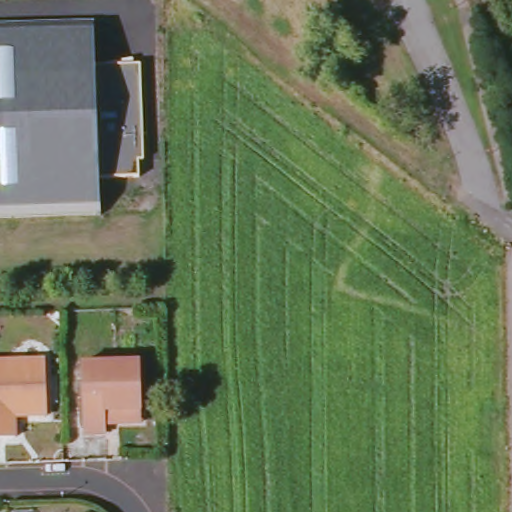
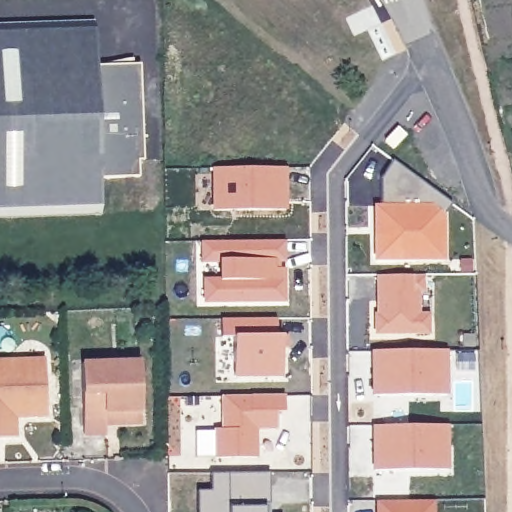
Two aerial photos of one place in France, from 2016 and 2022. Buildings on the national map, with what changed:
unchanged [(96,69),(141,67),(141,82),(144,164),(142,164),(139,164),(140,180),(100,182),(101,217),(0,220),(0,28),(94,25),(96,69)]
new [(441,215),(441,236),(442,260),(373,260),(372,237),(378,237),(377,179),(391,161),(431,190),(450,203),(441,215)]
new [(283,168),(283,210),(211,211),(211,168),(283,168)]
new [(199,241),(281,240),(281,262),(270,262),(270,270),(281,270),(281,302),(202,303),(202,281),(218,281),(218,262),(199,263),(199,241)]
new [(458,260),(470,260),(470,271),(458,271),(458,260)]
new [(374,316),(376,316),(376,276),(421,276),(421,291),(416,291),(416,315),(426,315),(427,333),(374,333),(374,316)]
new [(266,337),(279,337),(279,349),(279,377),(231,377),(231,337),(211,337),(211,319),(266,318),(266,337)]
new [(444,351),(444,396),(371,396),(370,351),(444,351)]
new [(473,354),(473,371),(456,372),(456,355),(473,354)]
unchanged [(14,364),(46,363),(48,414),(15,415),(16,435),(0,435),(0,358),(14,358),(14,364)]
unchanged [(108,422),(108,432),(86,433),(84,362),(142,360),(144,409),(144,421),(108,422)]
new [(221,429),(219,396),(281,396),(282,411),(274,412),(274,428),(248,429),(248,438),(253,438),(253,458),(213,458),(213,429),(221,429)]
new [(445,426),(445,471),(371,471),(371,426),(445,426)]
new [(193,511),(193,491),(206,490),(206,474),(267,473),(267,504),(263,504),(263,512),(193,512),(193,511)]
new [(375,501),(434,501),(434,512),(375,512),(375,501)]

